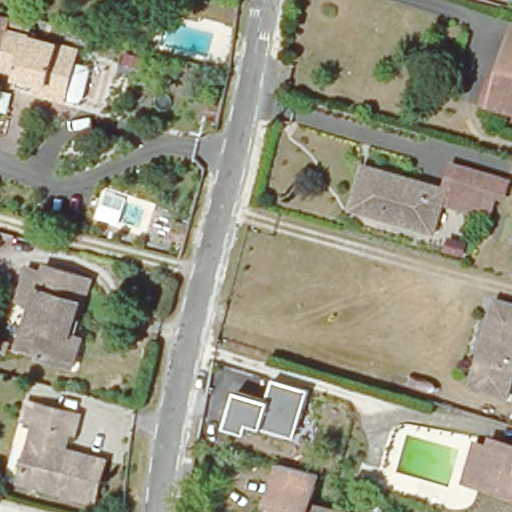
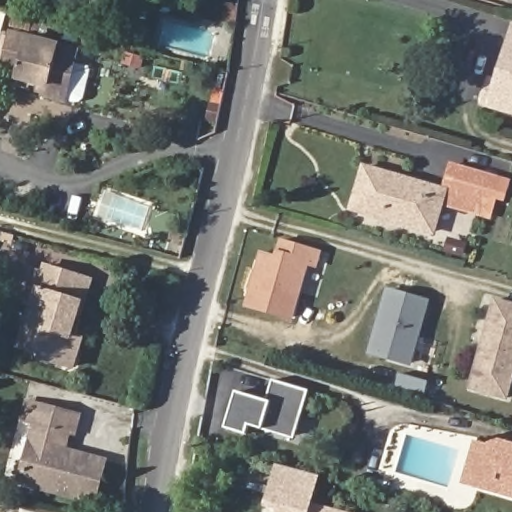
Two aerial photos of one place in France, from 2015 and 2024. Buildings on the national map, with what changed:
unchanged [(236,24),(220,22),(222,1),(238,3),(236,24)]
unchanged [(512,26),(512,72),(499,68),(512,26)]
unchanged [(45,96),(45,94),(17,87),(20,78),(0,73),(9,36),(79,55),(67,102),(45,96)]
unchanged [(512,72),(512,112),(488,105),(499,68),(512,72)]
unchanged [(495,196),(479,192),(473,210),(441,201),(432,231),(350,208),(362,167),(443,190),(448,173),(451,164),(500,178),(498,186),(495,196)]
unchanged [(184,236),(171,232),(175,219),(189,222),(184,236)]
new [(244,306),(260,250),(275,254),(276,249),(277,249),(280,238),(297,243),(322,250),(317,268),(309,266),(293,320),(269,313),(244,306)]
unchanged [(468,243),(465,257),(444,253),(447,238),(468,243)]
unchanged [(71,363),(38,354),(45,329),(22,322),(28,301),(12,297),(21,266),(37,271),(39,263),(72,273),(87,278),(72,334),(78,336),(71,363)]
new [(411,367),(368,354),(388,287),(430,300),(411,367)]
unchanged [(512,298),(512,372),(506,391),(469,380),(494,293),(512,298)]
unchanged [(310,390),(295,439),(264,430),(250,426),(248,434),(226,428),(236,392),(269,401),(273,379),(310,390)]
unchanged [(79,414),(74,434),(67,432),(63,450),(105,461),(95,502),(18,482),(34,423),(21,420),(25,401),(79,414)]
unchanged [(463,482),(474,445),(487,449),(490,439),(510,445),(512,445),(512,497),(486,489),(475,486),(463,482)]
unchanged [(307,506),(329,512),(276,512),(278,504),(266,501),(276,464),(315,474),(307,506)]

